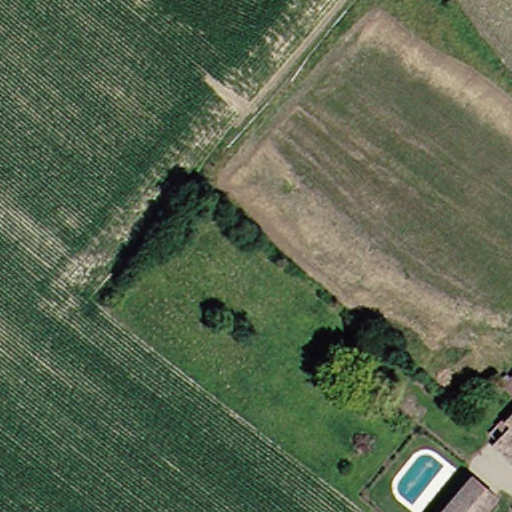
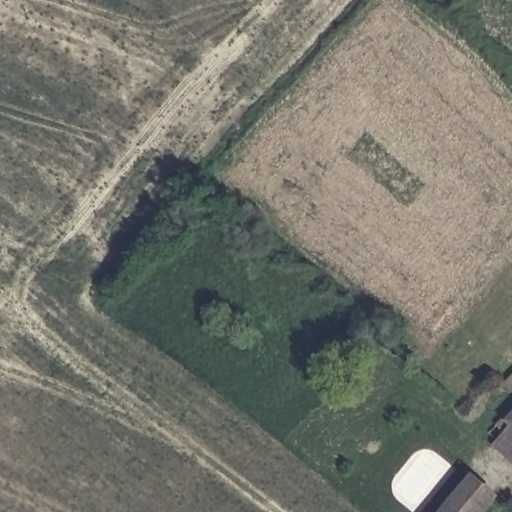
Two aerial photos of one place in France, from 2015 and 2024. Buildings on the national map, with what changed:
unchanged [(504,381),(512,373),(512,388),(504,381)]
unchanged [(491,439),(502,427),(495,419),(504,410),(506,413),(512,407),(512,459),(491,439)]
unchanged [(494,494),(479,512),(437,512),(469,474),(494,494)]

